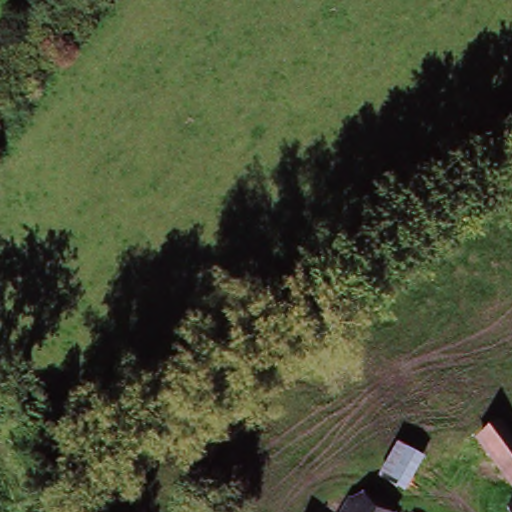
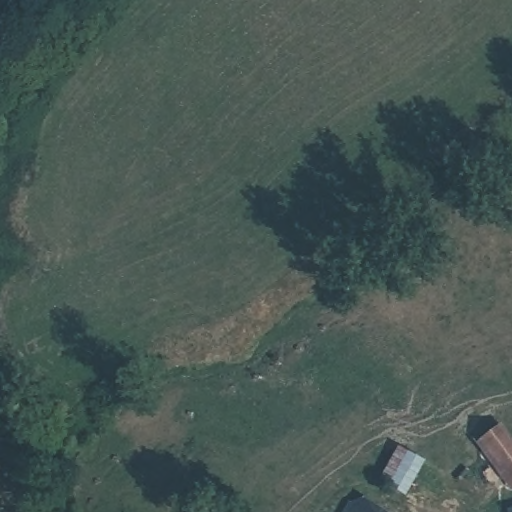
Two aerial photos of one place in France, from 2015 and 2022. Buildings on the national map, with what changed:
unchanged [(509,491),(482,454),(503,438),(512,451),(512,490),(509,491)]
unchanged [(409,457),(423,471),(404,488),(391,474),(409,457)]
unchanged [(384,512),(367,512),(372,505),(384,512)]
unchanged [(347,512),(349,509),(353,512),(347,512)]
unchanged [(504,512),(512,509),(512,512),(504,512)]

